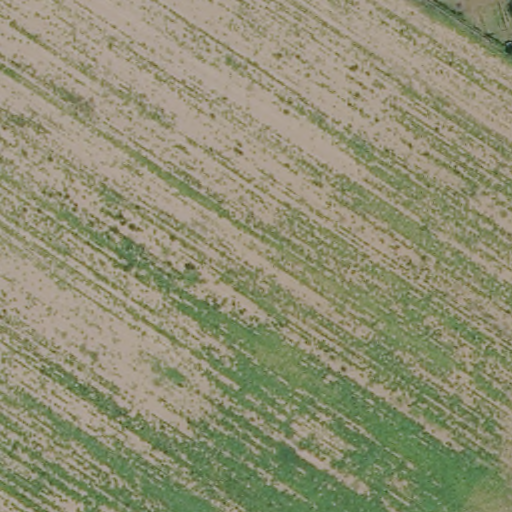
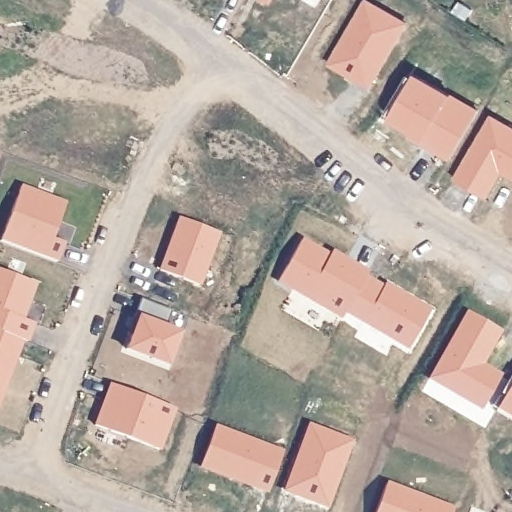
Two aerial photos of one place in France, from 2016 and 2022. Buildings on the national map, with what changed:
new [(270,1),(269,0),(270,0),(270,1)]
new [(366,0),(405,22),(368,86),(330,62),(366,0)]
new [(474,114),(446,162),(419,145),(422,141),(387,121),(412,77),(474,114)]
new [(492,116),(512,128),(512,177),(500,170),(485,196),(455,179),(492,116)]
new [(21,189),(66,206),(51,239),(62,243),(57,262),(1,243),(21,189)]
new [(182,220),(221,235),(200,287),(161,273),(182,220)]
new [(303,242),(353,271),(355,267),(365,273),(364,276),(345,311),(340,318),(280,284),(303,242)]
new [(23,319),(34,323),(27,341),(23,340),(0,331),(0,269),(37,283),(23,319)]
new [(364,276),(382,286),(384,282),(430,308),(409,347),(345,311),(364,276)]
new [(127,332),(132,316),(140,297),(172,309),(165,327),(178,332),(167,363),(125,348),(130,334),(127,332)]
new [(499,331),(480,366),(500,377),(482,409),(428,379),(466,313),(499,331)]
new [(2,396),(0,403),(0,331),(23,340),(2,396)]
new [(114,383),(179,408),(162,453),(97,430),(114,383)]
new [(498,407),(512,383),(512,415),(498,407)]
new [(308,426),(351,442),(327,507),(284,491),(308,426)]
new [(199,466),(213,427),(282,452),(267,492),(199,466)]
new [(374,512),(385,483),(452,509),(451,512),(374,512)]
new [(484,512),(469,512),(471,507),(484,512)]

